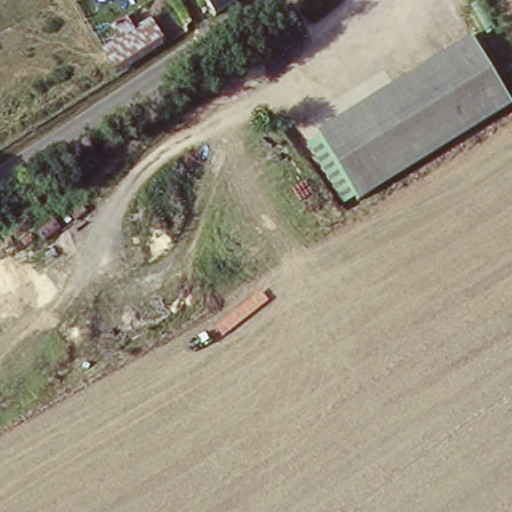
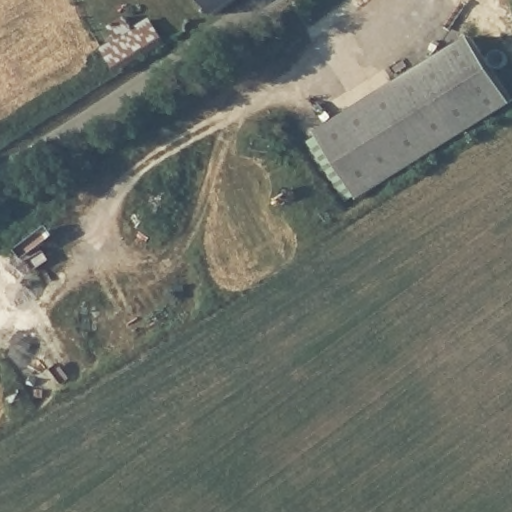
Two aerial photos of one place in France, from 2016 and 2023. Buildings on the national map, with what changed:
unchanged [(214,21),(199,0),(245,0),(214,21)]
unchanged [(111,36),(126,26),(132,38),(150,28),(161,47),(114,76),(102,58),(117,48),(111,36)]
unchanged [(468,40),(508,104),(353,199),(313,134),(468,40)]

